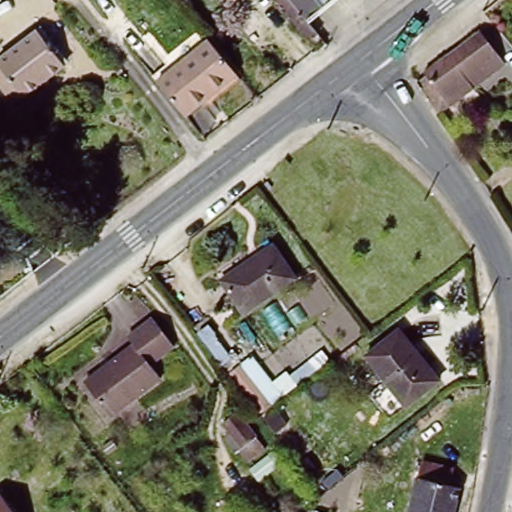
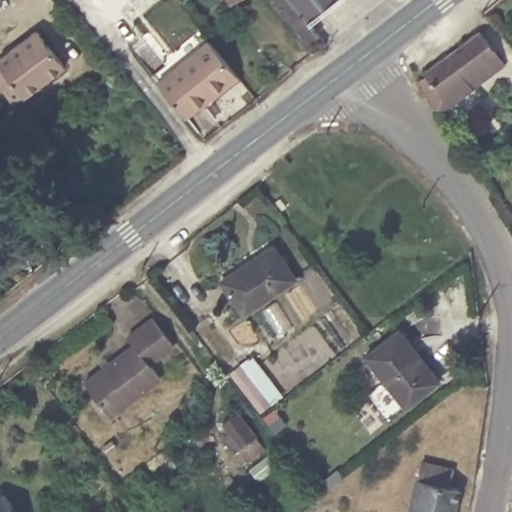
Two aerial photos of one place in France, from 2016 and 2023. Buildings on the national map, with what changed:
unchanged [(234,1),(233,0),(236,0),(234,1)]
unchanged [(309,21),(321,37),(309,46),(270,0),(291,0),(309,21)]
unchanged [(309,21),(291,0),(336,0),(309,21)]
unchanged [(477,32),(504,67),(441,115),(417,84),(424,78),(422,74),(477,32)]
unchanged [(61,68),(11,104),(0,91),(0,58),(35,33),(61,68)]
unchanged [(210,39),(237,74),(186,116),(157,80),(210,39)]
unchanged [(274,243),(297,273),(247,312),(224,280),(274,243)]
unchanged [(135,348),(130,341),(155,322),(176,350),(153,366),(163,380),(114,418),(88,385),(135,348)]
unchanged [(436,378),(404,404),(364,355),(397,329),(436,378)]
unchanged [(266,413),(257,420),(226,381),(235,373),(266,413)]
unchanged [(221,442),(228,436),(221,425),(233,415),(261,451),(245,464),(236,453),(231,456),(221,442)]
unchanged [(448,486),(465,489),(459,512),(411,512),(422,463),(451,469),(448,486)]
unchanged [(12,512),(0,512),(0,499),(1,498),(12,512)]

